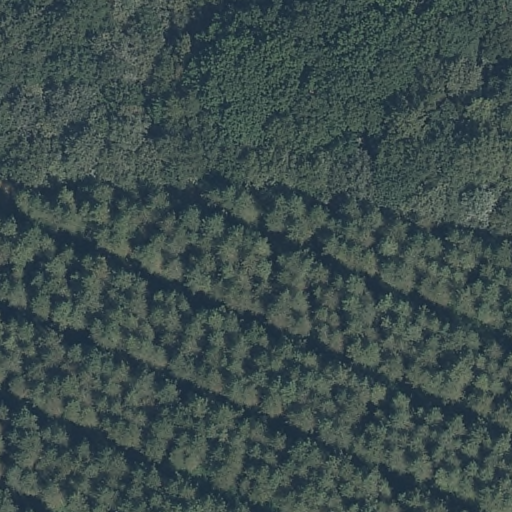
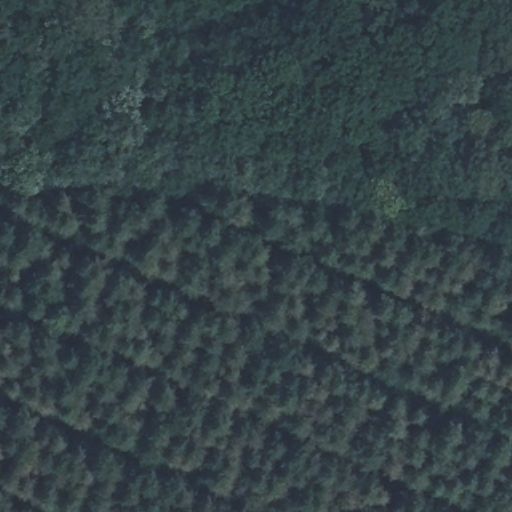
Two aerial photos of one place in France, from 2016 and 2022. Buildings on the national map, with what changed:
[]

